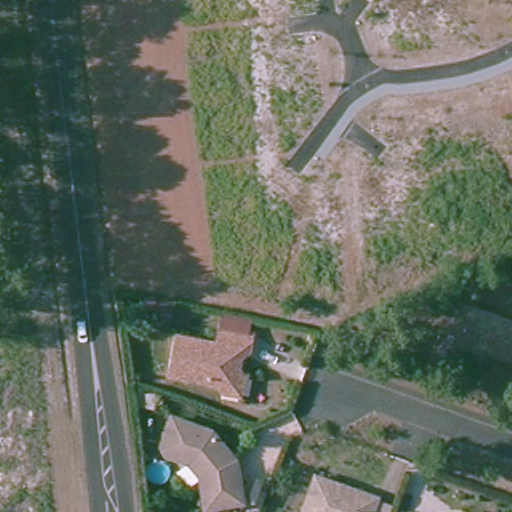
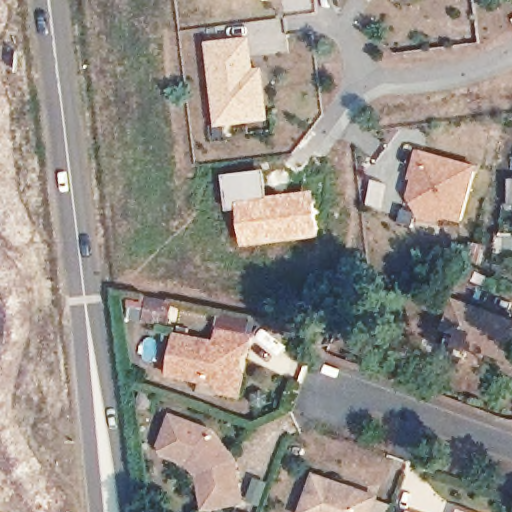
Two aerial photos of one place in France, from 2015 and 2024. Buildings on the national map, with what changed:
new [(217,126),(208,42),(252,38),(256,70),(264,69),(270,119),(217,126)]
new [(463,222),(445,218),(440,224),(423,220),(410,197),(415,181),(411,179),(418,150),(477,166),(463,222)]
new [(263,170),(268,196),(315,189),(321,238),(242,248),(236,211),(224,212),(219,174),(263,170)]
unchanged [(153,314),(133,310),(127,309),(132,286),(138,287),(157,292),(153,314)]
unchanged [(460,342),(463,335),(449,330),(459,303),(512,323),(512,362),(488,353),(486,358),(458,347),(460,342)]
unchanged [(243,396),(224,392),(226,385),(174,374),(182,336),(222,345),(225,329),(256,336),(253,353),(245,351),(240,376),(247,377),(243,396)]
unchanged [(205,495),(203,479),(193,465),(170,456),(166,448),(177,420),(216,435),(239,463),(245,505),(218,509),(208,511),(205,495)]
unchanged [(375,499),(374,501),(389,506),(387,512),(301,512),(314,477),(375,499)]
unchanged [(143,512),(136,512),(143,511),(143,512)]

